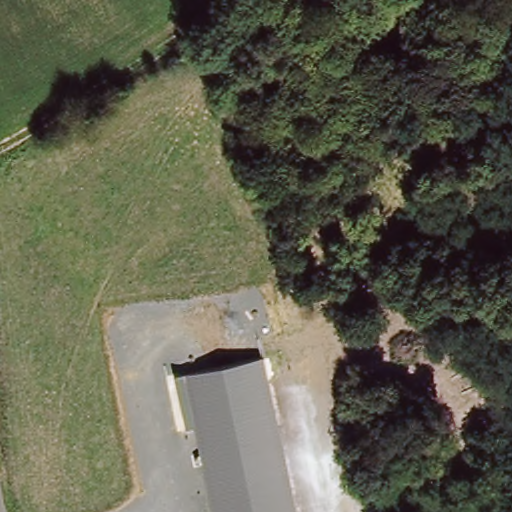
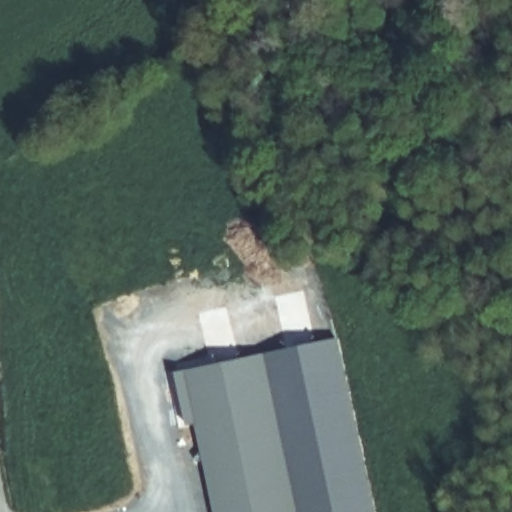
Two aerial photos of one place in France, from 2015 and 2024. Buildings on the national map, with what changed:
new [(266,353),(340,338),(376,512),(299,512),(266,353)]
unchanged [(299,512),(215,512),(196,424),(188,426),(176,372),(266,353),(299,512)]

